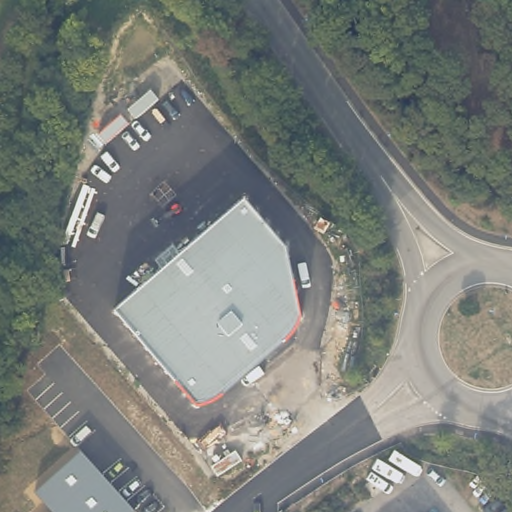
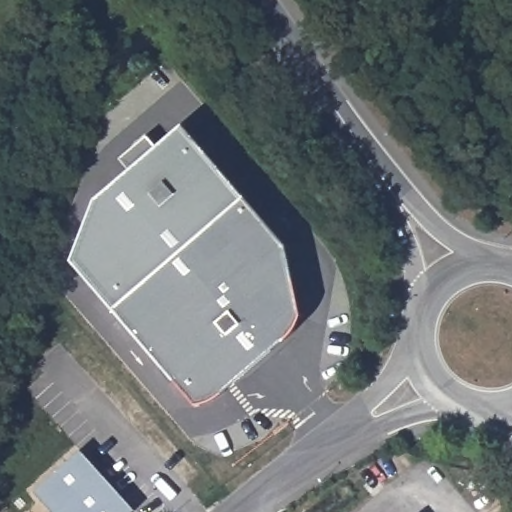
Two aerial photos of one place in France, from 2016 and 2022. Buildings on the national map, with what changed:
new [(71,261),(97,196),(129,169),(120,159),(147,136),(155,147),(184,123),(246,196),(115,310),(71,261)]
unchanged [(246,196),(287,246),(302,317),(297,329),(221,396),(208,403),(197,405),(115,310),(246,196)]
unchanged [(81,451),(136,511),(135,512),(53,512),(36,490),(81,451)]

